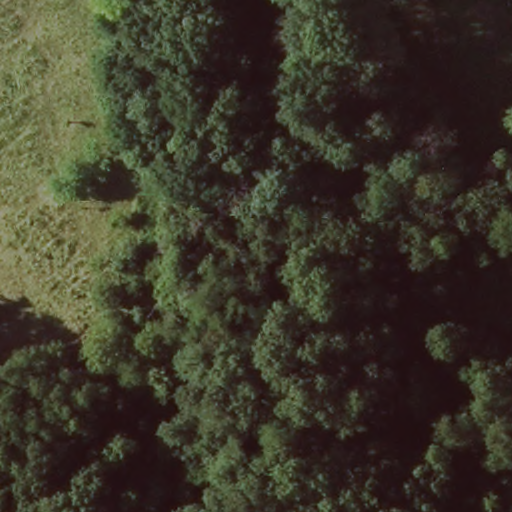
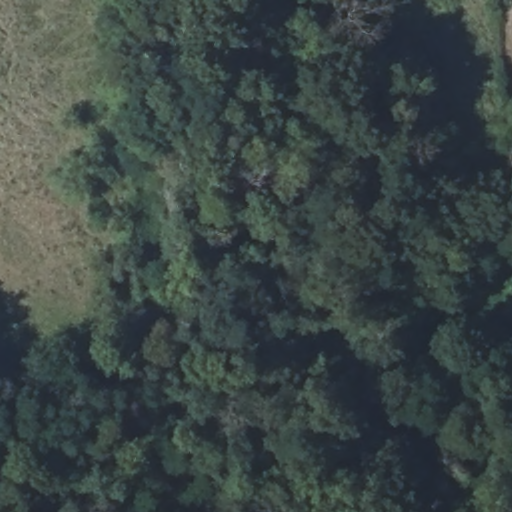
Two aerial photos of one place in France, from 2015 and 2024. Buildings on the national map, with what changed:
[]

